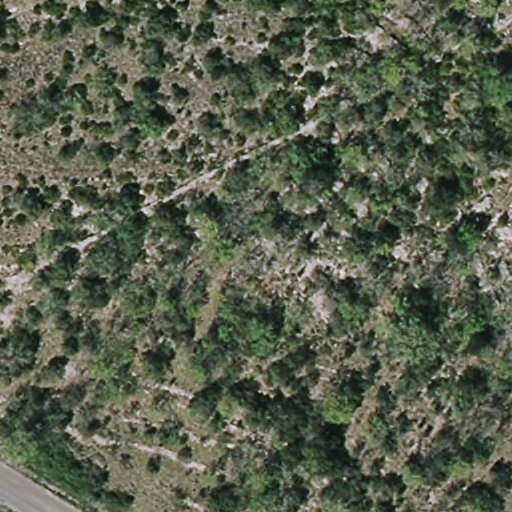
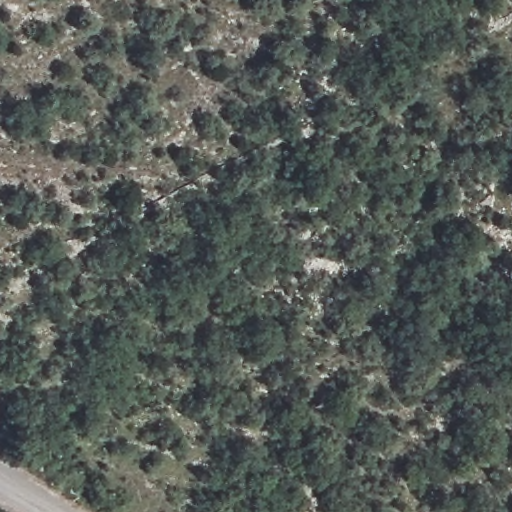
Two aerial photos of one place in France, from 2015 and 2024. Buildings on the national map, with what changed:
[]

